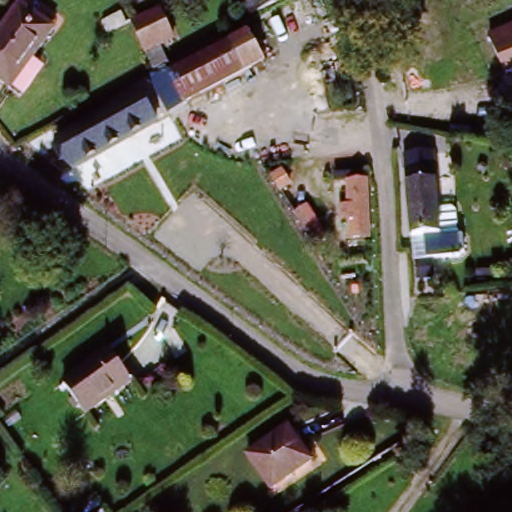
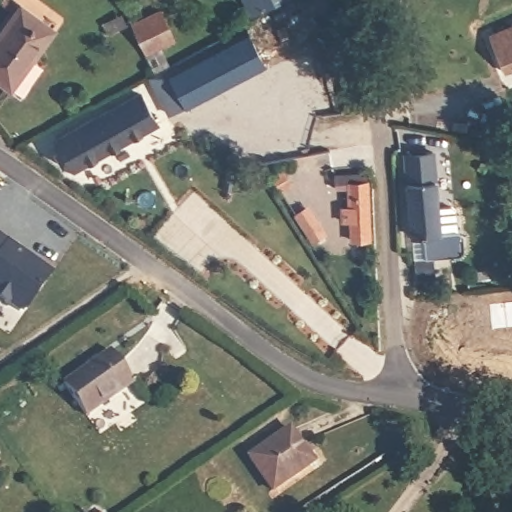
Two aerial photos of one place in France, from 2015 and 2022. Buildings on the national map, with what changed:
unchanged [(147,15),(140,0),(155,0),(160,10),(147,15)]
unchanged [(287,0),(249,20),(240,0),(287,0)]
unchanged [(24,11),(55,32),(16,90),(0,79),(0,45),(24,11)]
unchanged [(150,21),(157,38),(135,50),(126,32),(150,21)]
unchanged [(177,111),(156,74),(234,33),(253,72),(177,111)]
unchanged [(485,49),(512,40),(512,79),(501,84),(485,49)]
unchanged [(53,159),(106,130),(100,118),(123,105),(143,94),(150,105),(162,126),(65,180),(53,159)]
unchanged [(410,239),(407,159),(433,158),(434,211),(455,211),(455,238),(410,239)]
unchanged [(368,192),(370,239),(352,240),(351,202),(342,202),(342,191),(368,192)]
demolished [(165,226),(200,251),(190,267),(154,241),(165,226)]
new [(20,309),(8,301),(7,302),(0,297),(0,233),(10,240),(18,246),(52,271),(26,308),(20,309)]
unchanged [(436,257),(435,312),(412,311),(411,257),(436,257)]
unchanged [(83,415),(62,385),(110,355),(129,385),(83,415)]
unchanged [(270,495),(248,460),(291,432),(314,467),(270,495)]

